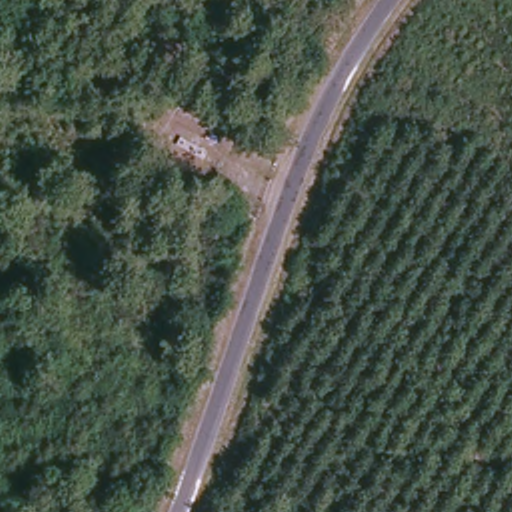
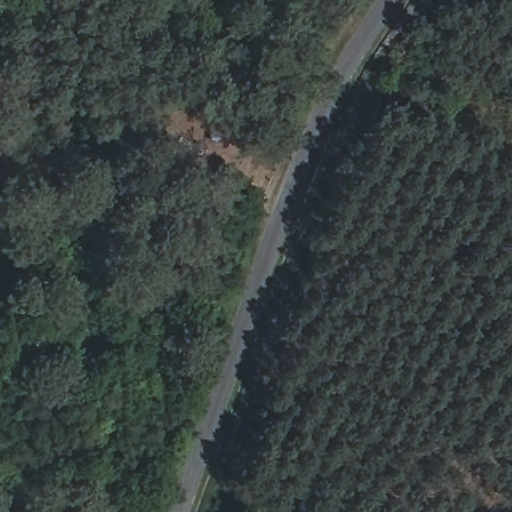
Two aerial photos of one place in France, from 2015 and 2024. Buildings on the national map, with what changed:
unchanged [(200,161),(174,145),(180,136),(206,152),(200,161)]

